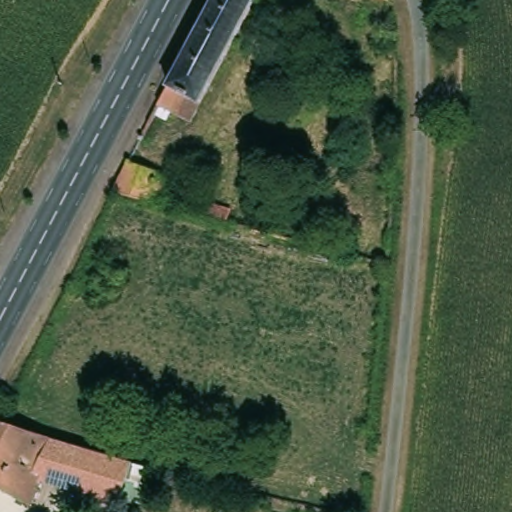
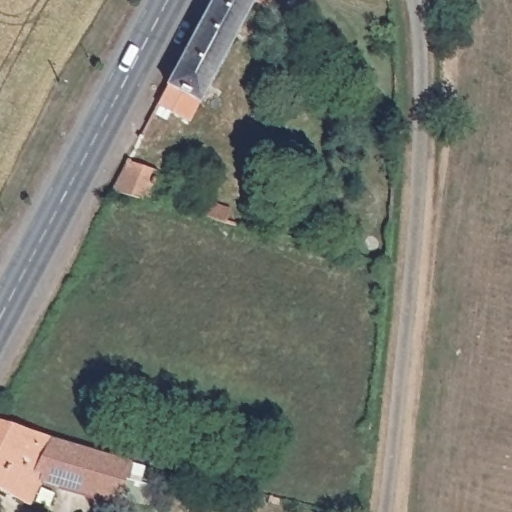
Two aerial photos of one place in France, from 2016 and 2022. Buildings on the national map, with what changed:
unchanged [(209,12),(216,0),(258,0),(194,119),(161,102),(209,12)]
unchanged [(271,5),(261,0),(274,0),(271,5)]
unchanged [(130,165),(161,174),(160,176),(171,179),(164,207),(115,194),(130,165)]
unchanged [(184,195),(233,208),(229,224),(179,211),(184,195)]
unchanged [(138,480),(135,487),(129,487),(125,497),(124,506),(46,485),(33,507),(0,489),(0,422),(136,462),(131,477),(138,480)]

